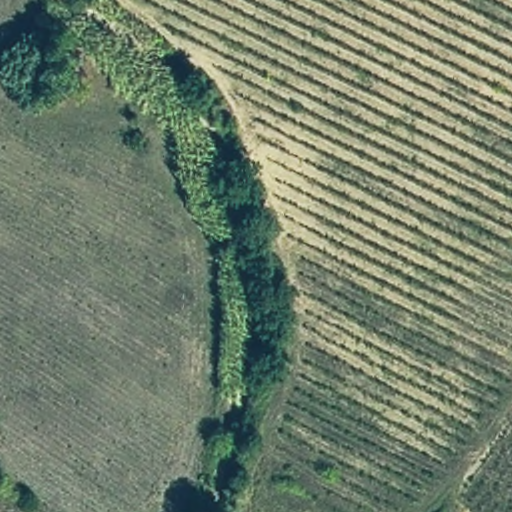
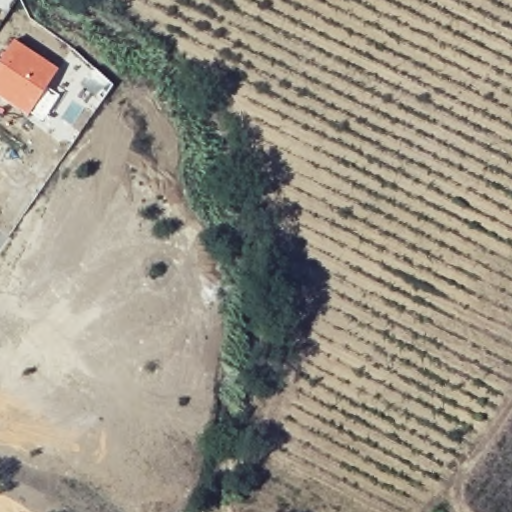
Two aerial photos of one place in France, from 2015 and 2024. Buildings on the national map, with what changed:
new [(58,69),(46,87),(58,96),(40,122),(0,95),(0,58),(14,38),(58,69)]

